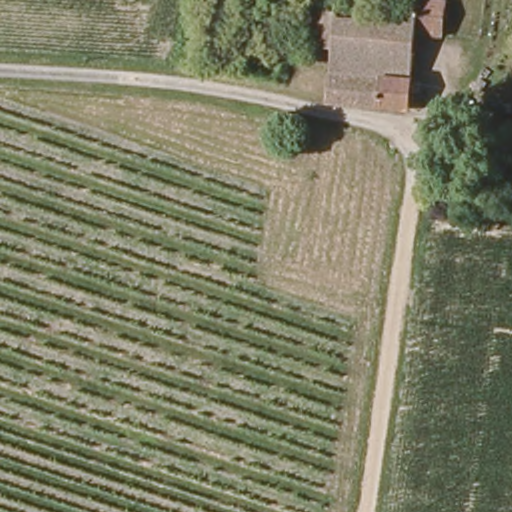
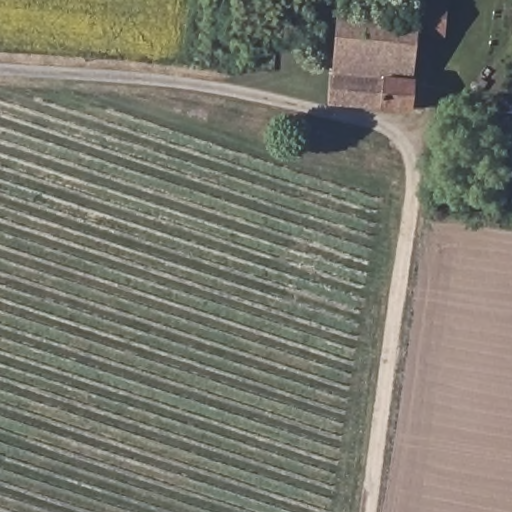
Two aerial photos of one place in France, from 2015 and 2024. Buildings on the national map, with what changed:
unchanged [(287,44),(289,0),(315,0),(312,45),(287,44)]
unchanged [(312,45),(315,0),(344,0),(340,47),(312,45)]
unchanged [(344,0),(449,0),(447,36),(421,35),(420,76),(430,78),(428,106),(336,101),(340,47),(344,0)]
unchanged [(499,110),(499,101),(512,102),(512,111),(499,110)]

